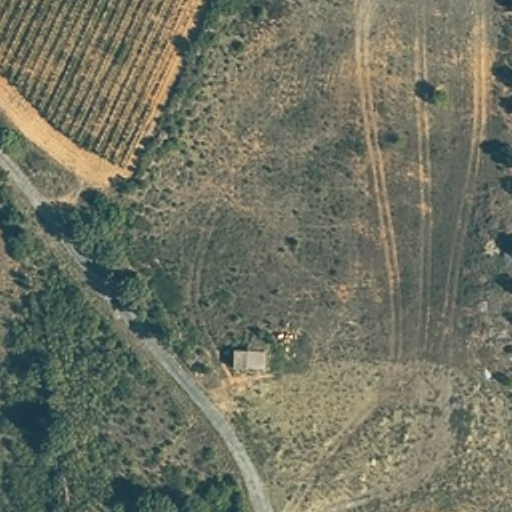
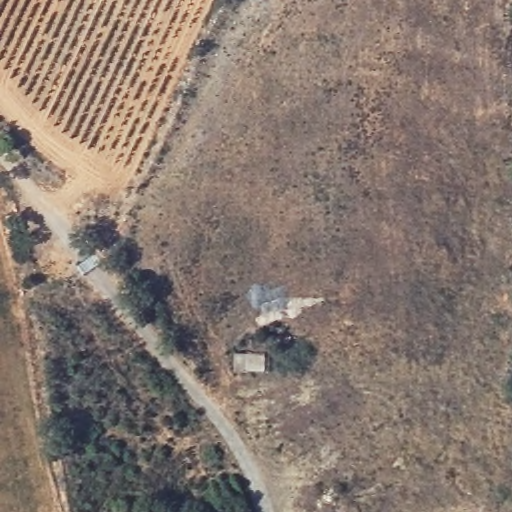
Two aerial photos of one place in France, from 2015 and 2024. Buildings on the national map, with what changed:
unchanged [(230,347),(263,347),(263,370),(230,370),(230,347)]

